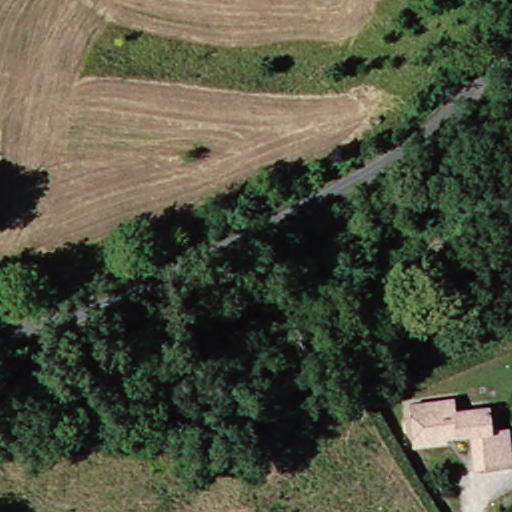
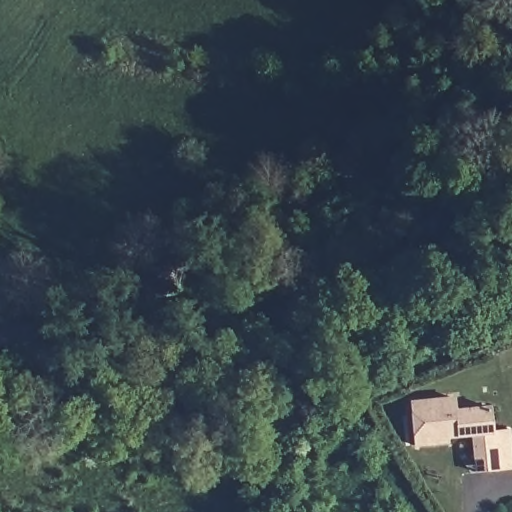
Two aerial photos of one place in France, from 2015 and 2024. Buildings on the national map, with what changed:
unchanged [(480,439),(449,440),(450,445),(414,446),(413,403),(458,399),(459,413),(496,410),(498,432),(512,430),(512,474),(498,475),(481,477),(481,460),(480,439)]

